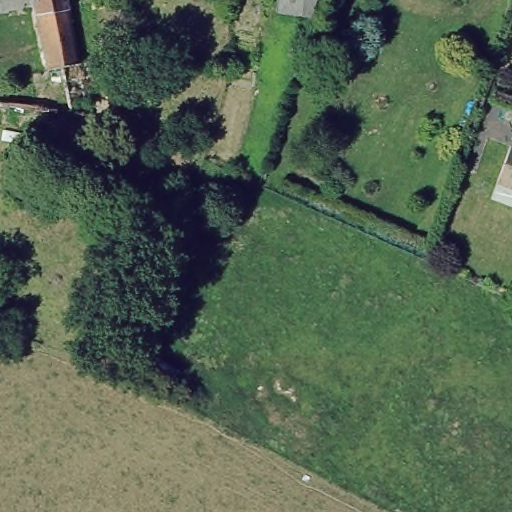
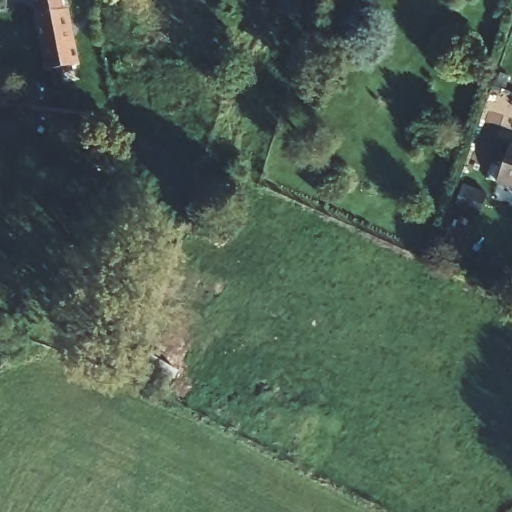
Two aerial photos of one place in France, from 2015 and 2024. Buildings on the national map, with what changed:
unchanged [(77,84),(91,84),(92,100),(80,100),(82,120),(49,116),(11,112),(12,92),(42,95),(39,71),(47,70),(38,0),(69,0),(77,84)]
unchanged [(291,25),(261,10),(264,0),(300,0),(291,25)]
unchanged [(512,135),(512,178),(492,169),(507,133),(512,135)]

